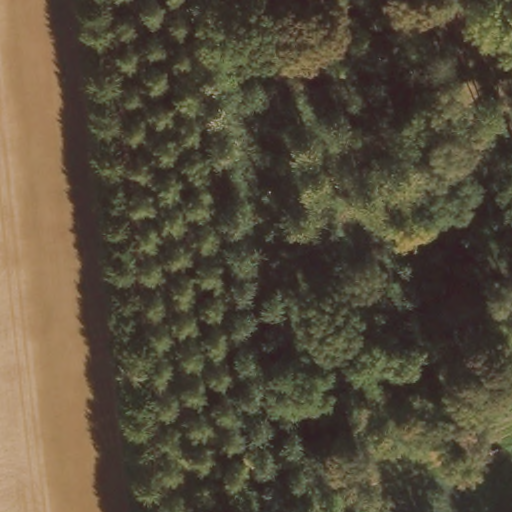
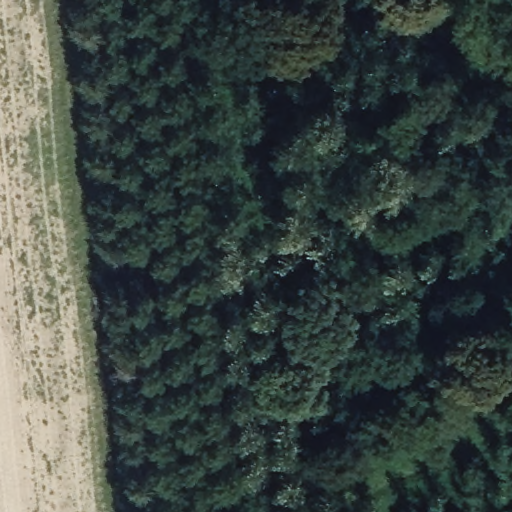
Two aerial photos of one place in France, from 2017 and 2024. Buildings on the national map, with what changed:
[]

